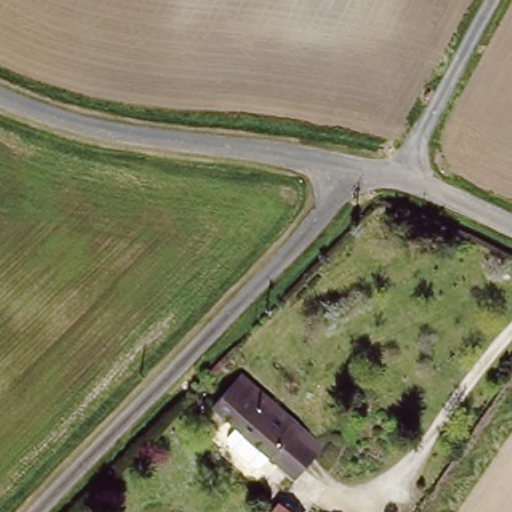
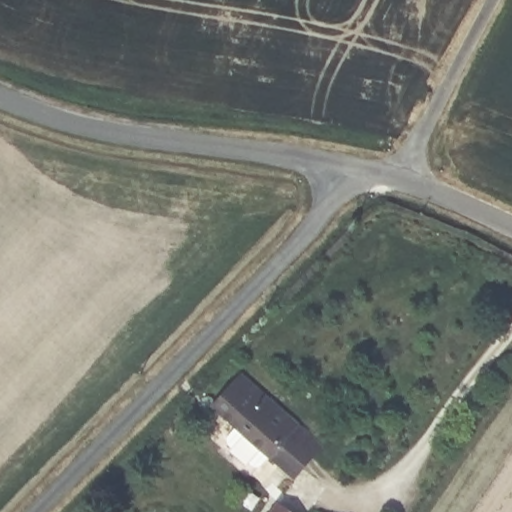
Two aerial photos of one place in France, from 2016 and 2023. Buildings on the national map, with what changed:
unchanged [(269,452),(213,406),(241,372),(298,419),(296,420),(269,452)]
unchanged [(320,440),(293,472),(269,452),(296,420),(320,440)]
unchanged [(288,512),(273,512),(279,505),(288,512)]

